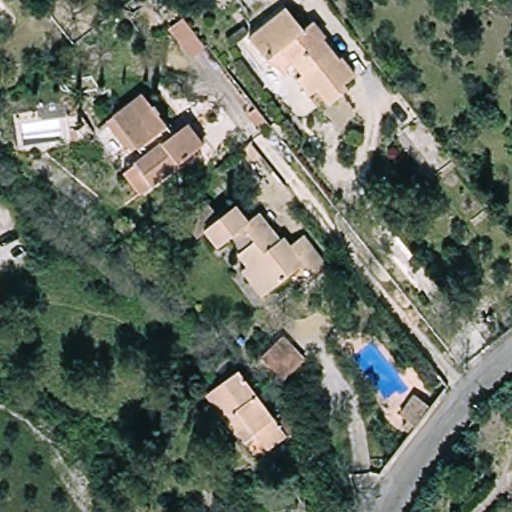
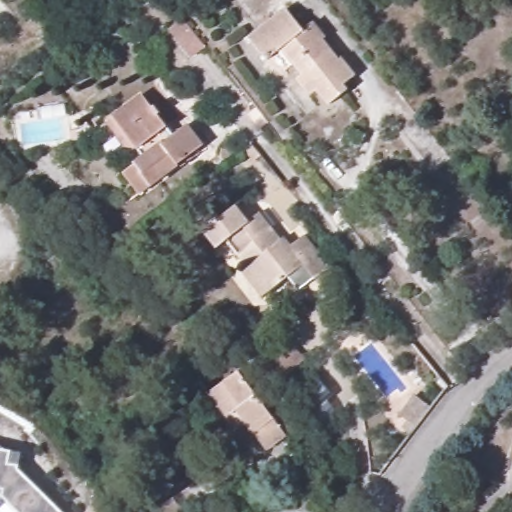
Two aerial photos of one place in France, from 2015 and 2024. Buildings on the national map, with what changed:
unchanged [(72,3),(69,0),(75,0),(72,3)]
unchanged [(246,40),(290,6),(308,29),(313,24),(325,40),(323,41),(341,59),(338,60),(354,77),(343,87),(347,92),(326,109),(314,94),(308,99),(296,82),(300,78),(279,52),(265,63),(246,40)]
unchanged [(189,19),(209,46),(196,57),(175,29),(189,19)]
unchanged [(147,99),(175,136),(184,129),(198,148),(134,196),(119,177),(134,166),(108,131),(120,123),(118,120),(147,99)]
unchanged [(264,134),(277,152),(269,158),(257,139),(264,134)]
unchanged [(198,236),(231,212),(242,228),(253,221),(274,248),(280,244),(285,251),(296,242),(322,274),(308,285),(297,270),(255,304),(234,277),(240,272),(219,244),(210,252),(198,236)]
unchanged [(290,334),(306,358),(281,375),(264,349),(290,334)]
unchanged [(237,438),(202,395),(233,371),(267,414),(275,407),(286,425),(287,426),(280,431),(290,443),(273,457),(263,445),(261,446),(250,455),(237,438)]
unchanged [(401,417),(416,396),(423,401),(434,410),(419,427),(417,429),(406,421),(401,417)]
new [(19,466),(19,470),(60,512),(16,512),(1,497),(3,490),(0,490),(0,449),(21,453),(19,466)]
unchanged [(158,492),(142,512),(134,512),(115,497),(133,474),(158,492)]

